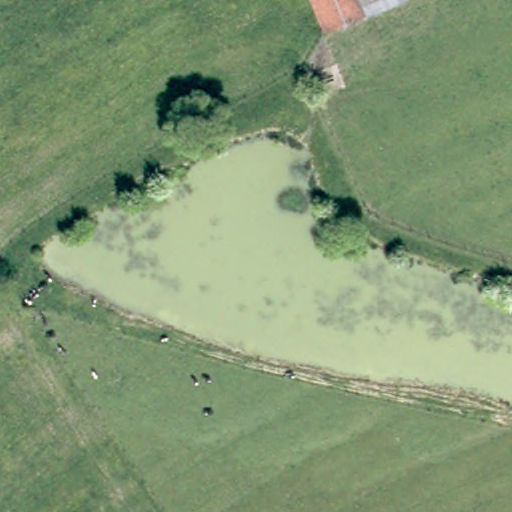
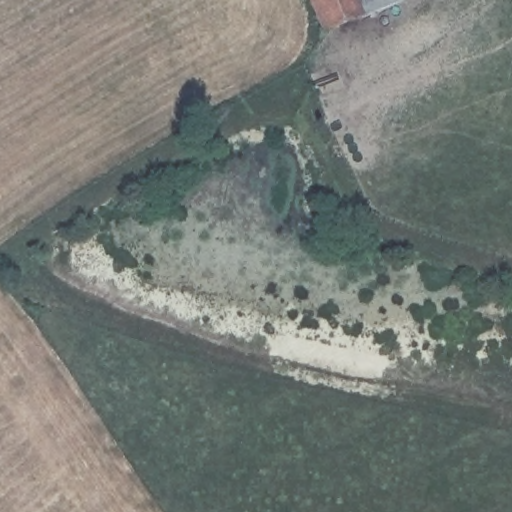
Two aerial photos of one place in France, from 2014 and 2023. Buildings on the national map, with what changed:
unchanged [(408,2),(326,36),(311,0),(407,0),(408,2)]

